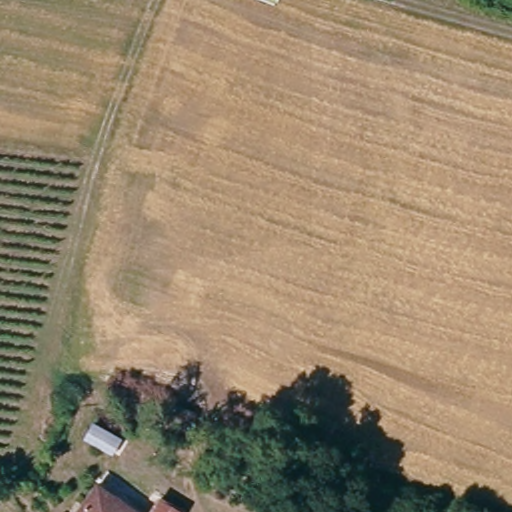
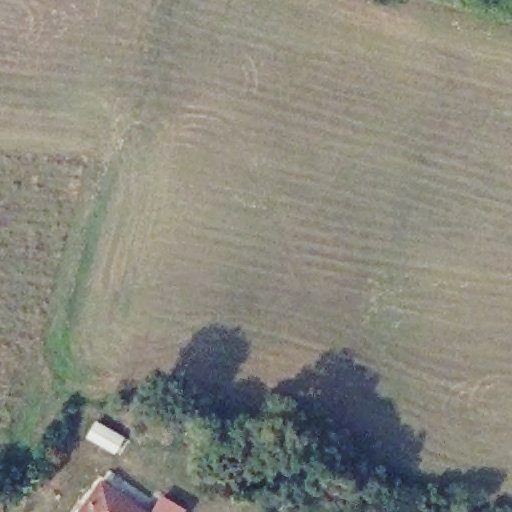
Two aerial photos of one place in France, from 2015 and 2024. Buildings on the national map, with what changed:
unchanged [(145,512),(78,512),(87,497),(95,485),(145,512)]
unchanged [(188,506),(185,512),(150,512),(159,490),(188,506)]

